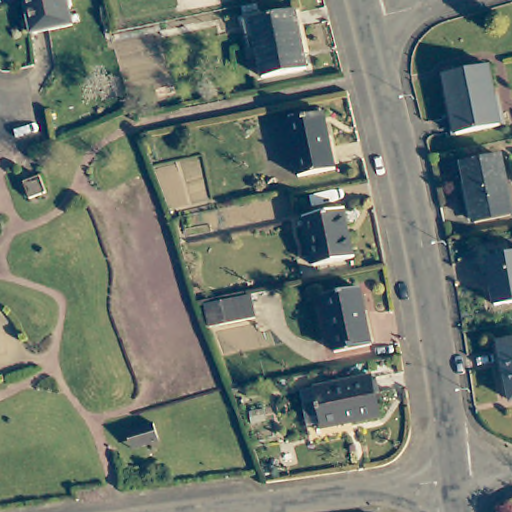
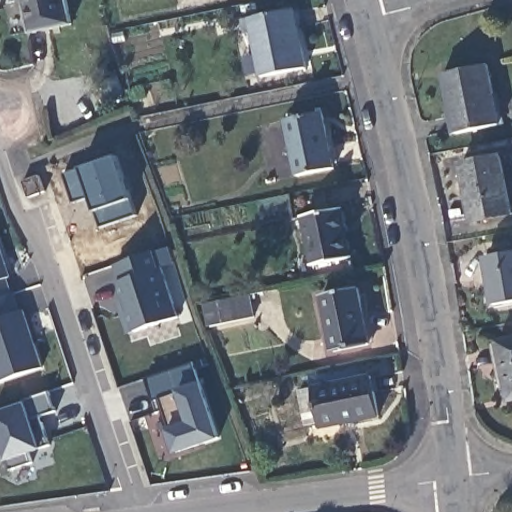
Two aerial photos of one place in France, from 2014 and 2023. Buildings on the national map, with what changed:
unchanged [(31,36),(24,0),(65,0),(71,28),(31,36)]
unchanged [(258,80),(246,19),(290,10),(302,71),(258,80)]
unchanged [(498,129),(453,139),(440,79),(486,70),(498,129)]
unchanged [(294,179),(283,121),(319,115),(330,172),(294,179)]
unchanged [(512,212),(512,220),(476,228),(464,170),(503,162),(512,212)]
unchanged [(23,196),(16,179),(32,172),(39,190),(23,196)]
unchanged [(313,270),(304,219),(343,212),(352,263),(313,270)]
new [(21,313),(24,312),(44,368),(0,381),(0,249),(9,277),(21,313)]
new [(124,311),(130,310),(121,281),(116,265),(154,252),(160,270),(163,268),(179,316),(153,326),(130,332),(124,311)]
unchanged [(493,305),(484,258),(512,253),(512,302),(493,305)]
unchanged [(333,353),(322,298),(359,291),(369,346),(333,353)]
unchanged [(253,323),(207,329),(200,308),(249,298),(253,323)]
unchanged [(509,401),(498,342),(512,339),(512,401),(509,401)]
new [(164,411),(159,413),(148,378),(194,364),(203,381),(222,439),(175,455),(164,411)]
unchanged [(297,396),(310,394),(369,383),(377,424),(318,435),(317,427),(303,430),(297,396)]
new [(39,416),(49,445),(41,448),(42,450),(26,455),(32,463),(10,470),(6,461),(0,442),(0,411),(22,404),(24,400),(49,393),(55,411),(39,416)]

